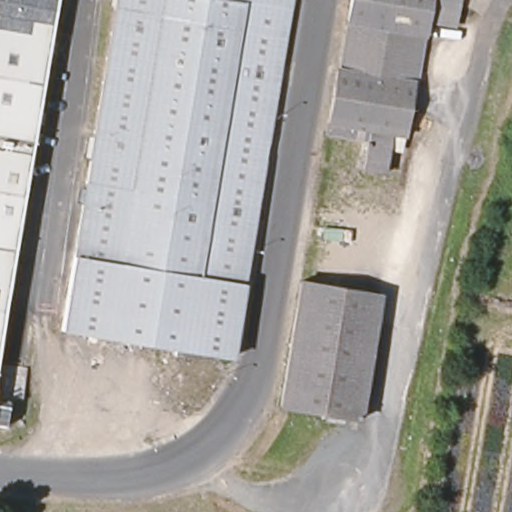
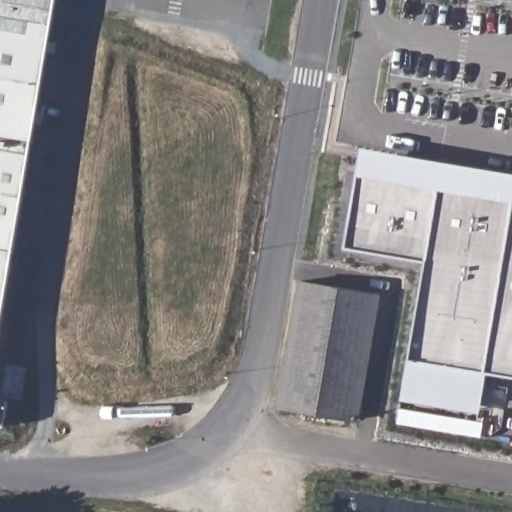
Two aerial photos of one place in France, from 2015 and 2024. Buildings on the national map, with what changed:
unchanged [(0,348),(0,0),(62,0),(0,348)]
demolished [(125,0),(293,0),(259,202),(95,174),(125,0)]
demolished [(433,5),(409,137),(393,134),(391,150),(387,176),(365,172),(370,140),(331,134),(354,0),(434,0),(433,5)]
new [(404,160),(402,171),(350,162),(351,151),(404,160)]
new [(413,252),(332,239),(345,162),(402,171),(404,159),(453,167),(451,179),(512,189),(512,369),(396,350),(413,252)]
new [(512,189),(451,179),(453,168),(512,179),(512,189)]
demolished [(65,334),(95,174),(259,202),(235,361),(65,334)]
unchanged [(384,292),(363,419),(286,405),(306,278),(384,292)]
new [(472,362),(466,399),(390,387),(396,350),(472,362)]
unchanged [(0,428),(0,401),(12,404),(9,429),(0,428)]

